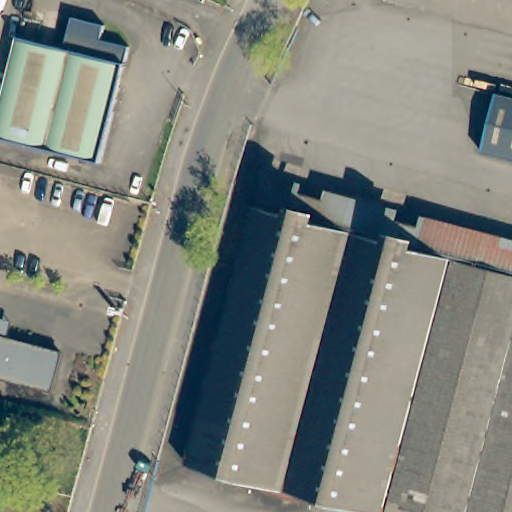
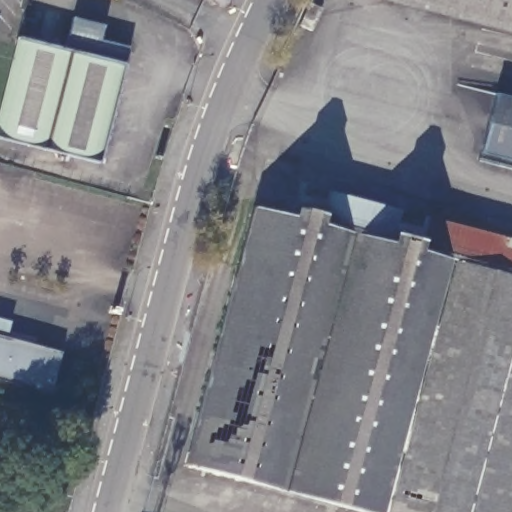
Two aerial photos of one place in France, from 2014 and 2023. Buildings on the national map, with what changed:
unchanged [(433,0),(512,0),(512,22),(433,0)]
unchanged [(77,20),(106,28),(103,42),(129,49),(124,67),(69,54),(77,20)]
unchanged [(100,166),(0,141),(0,137),(22,42),(69,54),(124,67),(100,166)]
unchanged [(478,155),(492,97),(512,102),(512,163),(478,155)]
unchanged [(297,192),(512,247),(512,282),(289,226),(297,192)]
unchanged [(512,282),(512,512),(328,512),(187,476),(249,238),(238,235),(243,214),(289,226),(512,282)]
unchanged [(49,395),(0,382),(0,341),(58,357),(49,395)]

